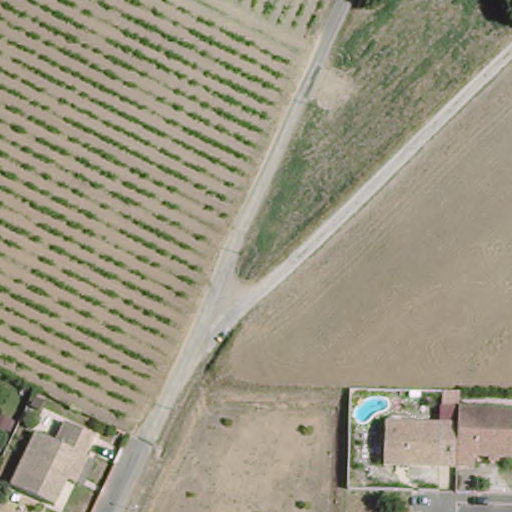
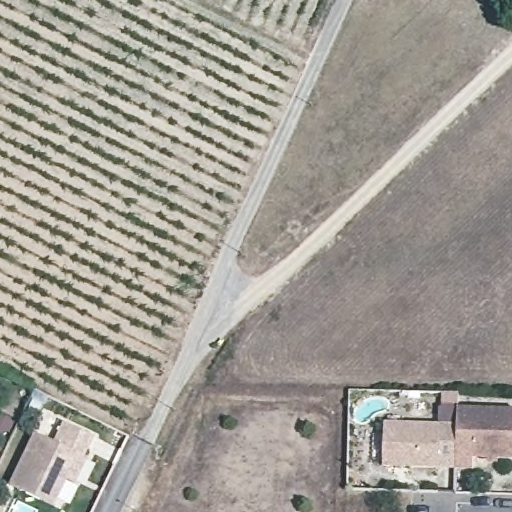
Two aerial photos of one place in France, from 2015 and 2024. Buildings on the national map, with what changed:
unchanged [(512,454),(475,452),(474,462),(457,462),(457,460),(459,418),(459,406),(512,408),(512,454)]
unchanged [(370,457),(371,414),(459,418),(457,460),(370,457)]
unchanged [(58,441),(67,421),(96,434),(87,455),(82,453),(69,482),(57,505),(15,485),(37,433),(58,441)]

